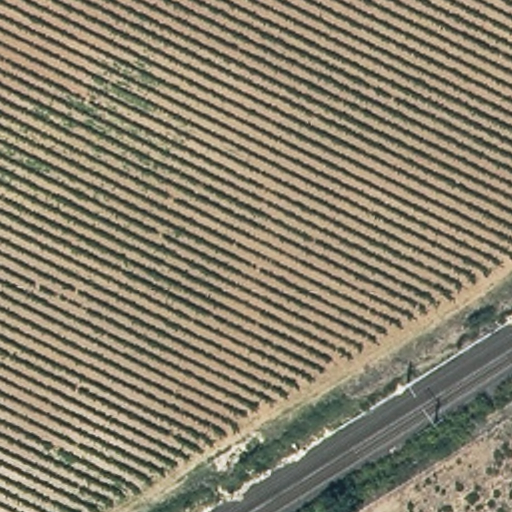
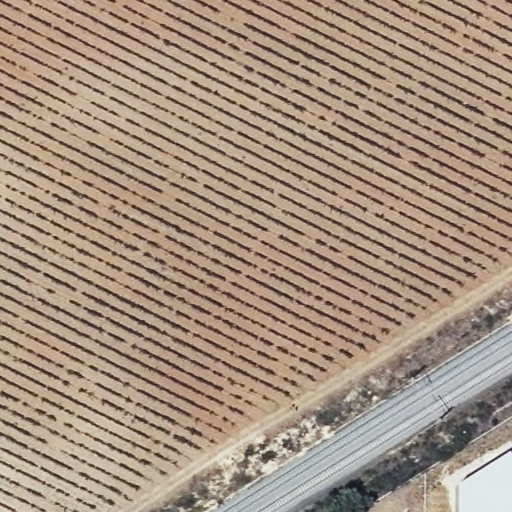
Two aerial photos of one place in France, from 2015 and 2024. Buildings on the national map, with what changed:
new [(507,452),(512,460),(512,512),(453,512),(453,486),(507,452)]

